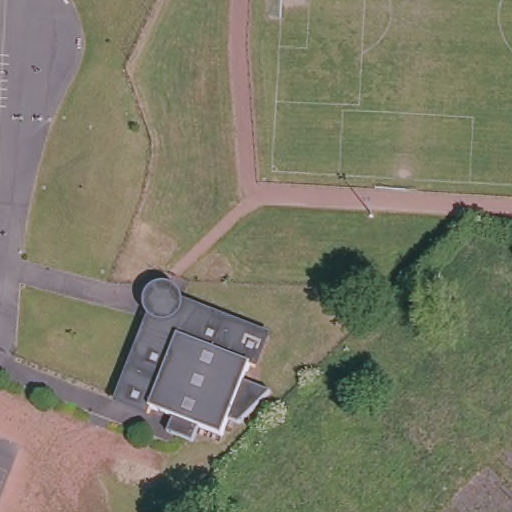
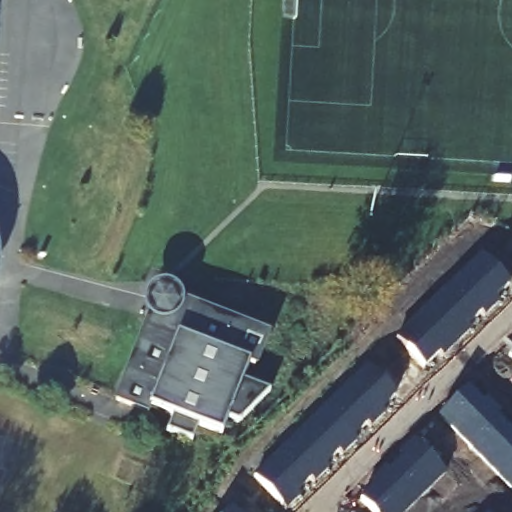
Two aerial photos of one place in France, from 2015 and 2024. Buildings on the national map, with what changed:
new [(512,282),(497,297),(500,300),(487,314),(484,311),(469,326),(472,329),(446,354),(441,350),(427,366),(398,335),(482,251),(512,282)]
unchanged [(152,313),(150,310),(149,306),(149,302),(149,298),(151,295),(153,292),(157,290),(160,288),(164,288),(167,288),(172,290),(175,292),(177,295),(179,299),(179,301),(267,335),(255,367),(250,365),(243,381),(271,391),(239,423),(228,419),(222,436),(198,427),(192,441),(167,431),(172,417),(151,408),(149,413),(117,401),(152,313)]
new [(397,396),(384,409),(387,411),(371,427),(367,423),(355,435),(359,440),(345,454),(341,450),(327,463),(331,466),(317,480),(314,476),(300,490),(303,494),(287,508),(254,474),(367,365),(397,396)]
new [(484,400),(491,393),(505,408),(498,414),(512,428),(512,427),(512,487),(442,416),(472,386),(484,400)]
new [(404,512),(371,512),(359,499),(421,441),(447,471),(404,512)]
new [(229,512),(235,506),(240,512),(229,512)]

